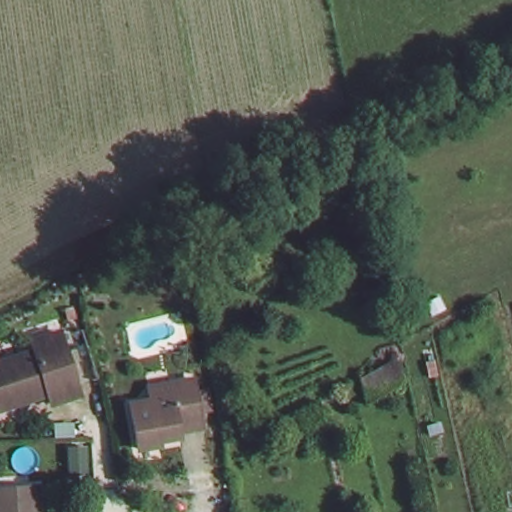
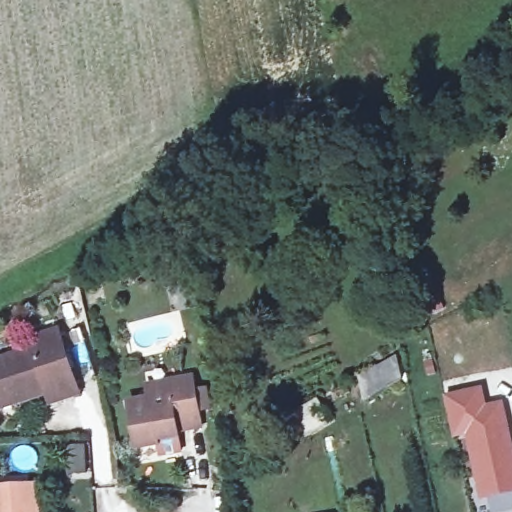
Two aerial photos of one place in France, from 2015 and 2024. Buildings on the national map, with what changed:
unchanged [(78,390),(46,402),(42,389),(0,402),(0,350),(25,341),(22,332),(57,320),(78,390)]
unchanged [(403,387),(369,405),(362,380),(395,362),(403,387)]
unchanged [(204,418),(180,423),(181,430),(160,435),(161,441),(137,445),(124,395),(148,390),(145,377),(192,367),(204,418)]
new [(512,494),(480,501),(465,435),(454,438),(445,396),(482,388),(486,407),(502,403),(512,444),(512,494)]
unchanged [(303,410),(317,436),(294,448),(280,423),(303,410)]
unchanged [(89,471),(67,471),(64,442),(86,441),(89,471)]
unchanged [(39,512),(0,512),(0,487),(38,486),(39,512)]

